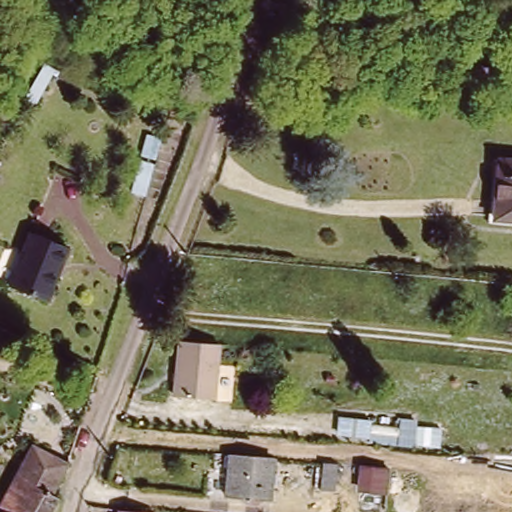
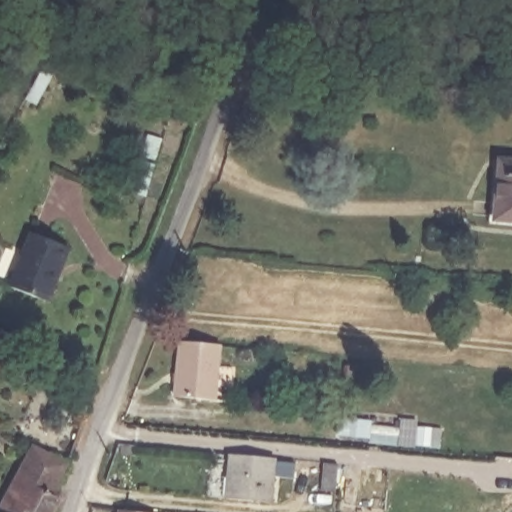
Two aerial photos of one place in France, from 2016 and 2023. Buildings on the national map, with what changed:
unchanged [(43,64),(55,70),(34,107),(22,101),(43,64)]
unchanged [(496,220),(503,160),(512,162),(512,222),(496,220)]
unchanged [(59,268),(45,300),(15,286),(37,236),(71,251),(63,270),(59,268)]
unchanged [(221,345),(215,400),(175,396),(181,341),(221,345)]
unchanged [(1,505),(24,462),(36,440),(51,448),(72,459),(55,490),(64,494),(55,512),(5,512),(7,508),(1,505)]
unchanged [(272,455),(269,497),(228,494),(231,452),(272,455)]
unchanged [(336,464),(335,486),(323,485),(323,463),(336,464)]
unchanged [(386,484),(361,483),(361,466),(386,466),(386,484)]
unchanged [(157,512),(121,512),(122,506),(158,510),(157,512)]

